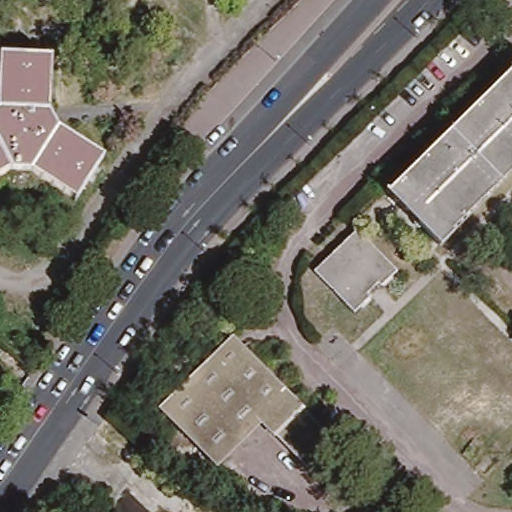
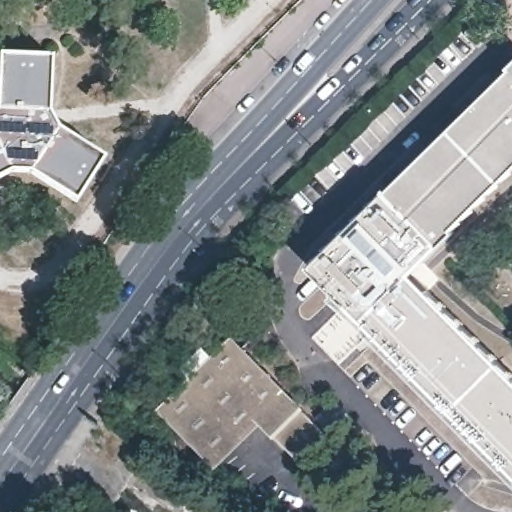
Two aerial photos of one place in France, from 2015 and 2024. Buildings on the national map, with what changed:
unchanged [(63,127),(108,156),(81,199),(35,170),(15,169),(0,178),(0,107),(2,104),(3,53),(53,56),(53,108),(63,127)]
unchanged [(442,246),(391,193),(512,72),(512,176),(442,246)]
new [(429,232),(442,246),(413,275),(512,375),(512,480),(333,298),(335,295),(309,269),(389,191),(391,193),(429,232)]
demolished [(401,270),(384,285),(381,281),(369,292),(374,295),(357,311),(316,269),(359,227),(401,270)]
unchanged [(228,338),(337,454),(314,481),(263,428),(213,471),(154,412),(228,338)]

